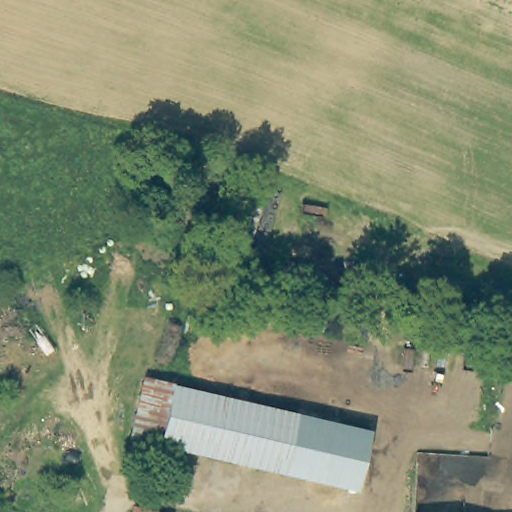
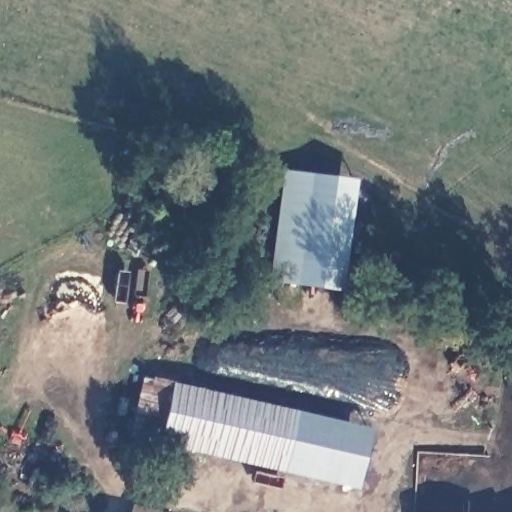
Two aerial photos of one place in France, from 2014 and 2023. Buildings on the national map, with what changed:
new [(343,292),(270,284),(286,171),(359,179),(343,292)]
unchanged [(377,430),(364,490),(142,436),(155,379),(377,430)]
unchanged [(154,512),(125,512),(125,509),(133,507),(154,512)]

